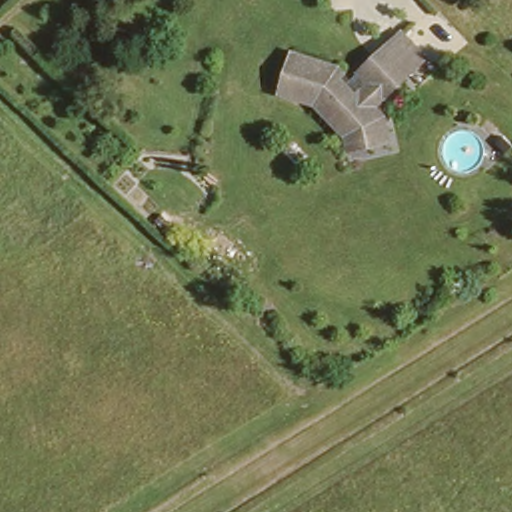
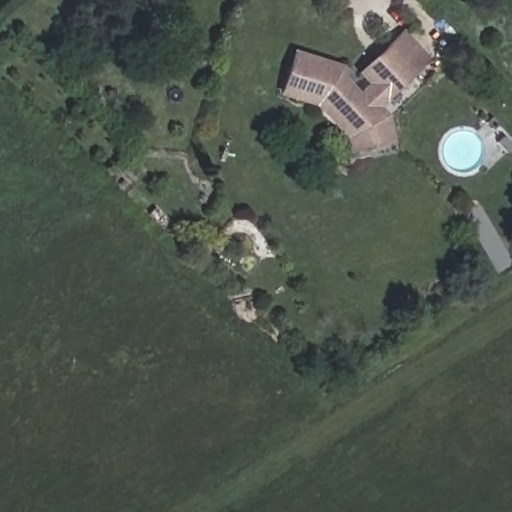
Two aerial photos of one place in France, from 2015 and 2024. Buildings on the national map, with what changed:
unchanged [(347,156),(345,150),(342,140),(312,105),(280,97),(291,58),(333,70),(338,75),(333,79),(352,99),(366,85),(356,75),(398,35),(422,61),(370,109),(378,119),(382,129),(386,145),(347,156)]

